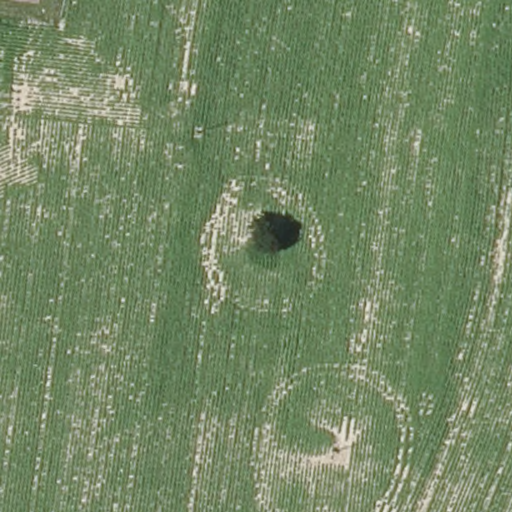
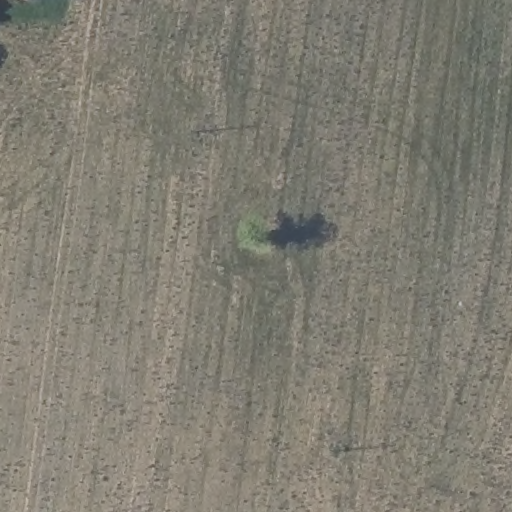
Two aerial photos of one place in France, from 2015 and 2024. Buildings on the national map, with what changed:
unchanged [(14,0),(35,0),(35,4),(14,0)]

